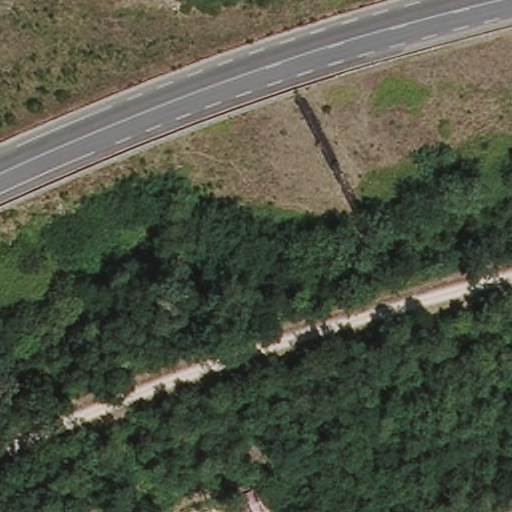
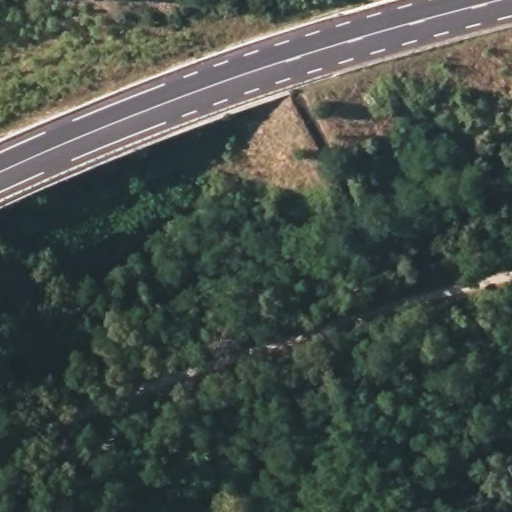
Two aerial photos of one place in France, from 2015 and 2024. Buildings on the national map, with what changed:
unchanged [(511,482),(507,459),(512,458),(512,482),(511,482)]

